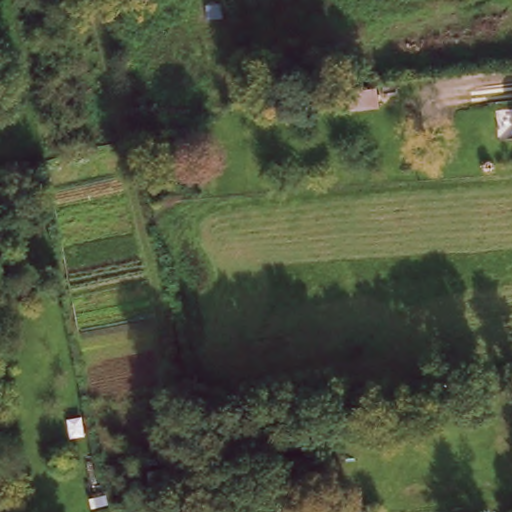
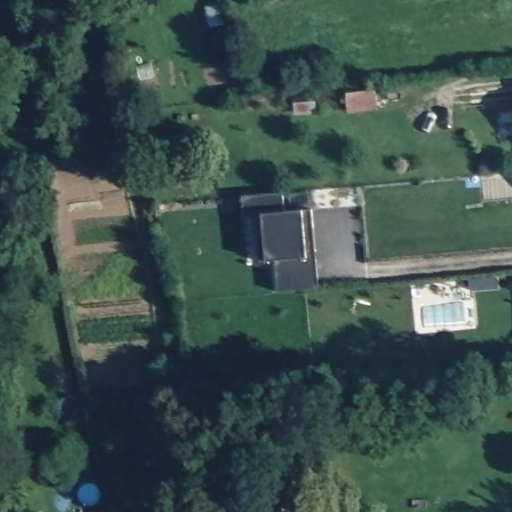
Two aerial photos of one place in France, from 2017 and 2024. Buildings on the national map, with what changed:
new [(370,87),(372,102),(348,105),(347,90),(370,87)]
new [(317,287),(278,290),(276,259),(265,259),(262,214),(244,215),(243,196),(282,193),(283,212),(312,210),(317,287)]
unchanged [(143,467),(175,464),(177,491),(145,492),(143,467)]

